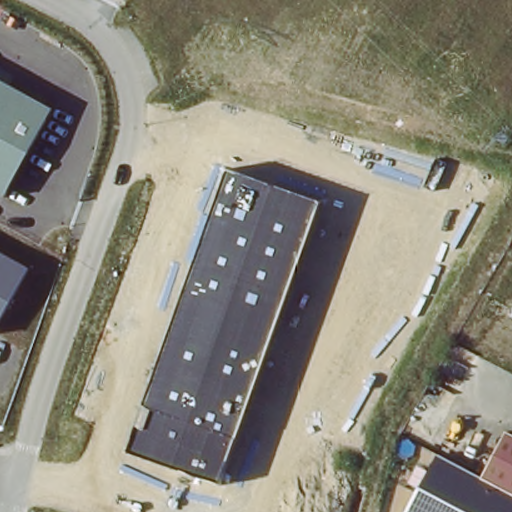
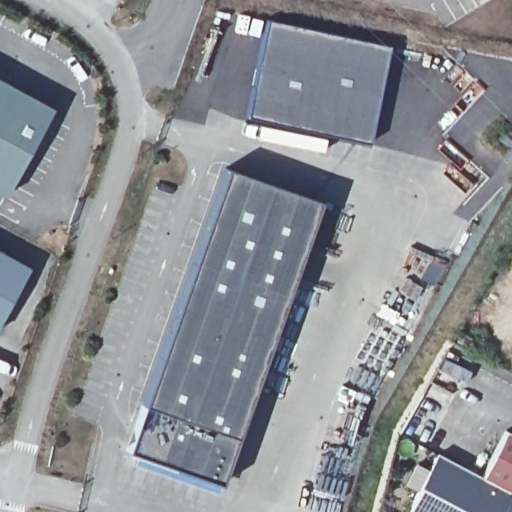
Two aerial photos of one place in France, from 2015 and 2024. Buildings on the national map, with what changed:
new [(257,59),(268,19),(392,45),(370,143),(245,117),(257,59)]
unchanged [(53,108),(5,196),(0,194),(0,79),(53,108)]
unchanged [(220,482),(130,451),(226,169),(320,201),(220,482)]
unchanged [(0,321),(0,252),(30,268),(0,321)]
unchanged [(512,433),(512,492),(477,473),(502,428),(512,433)]
unchanged [(512,512),(402,512),(435,451),(477,473),(512,492),(512,512)]

